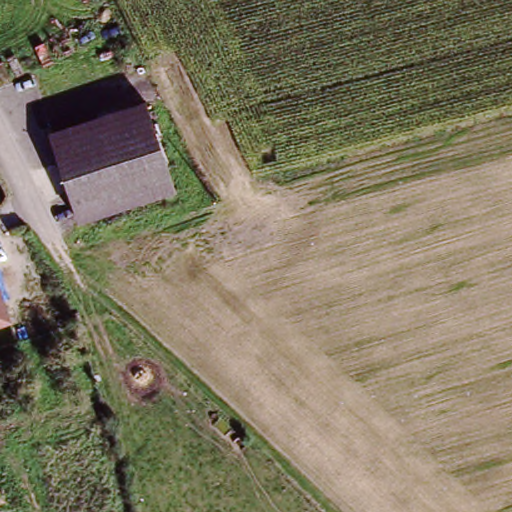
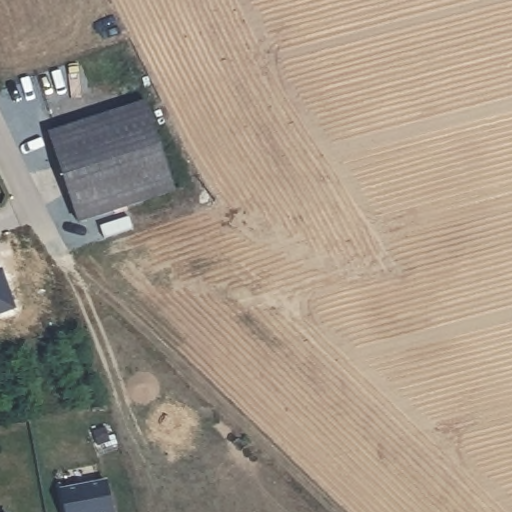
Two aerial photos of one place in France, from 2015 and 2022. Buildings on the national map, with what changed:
unchanged [(73,219),(56,172),(44,135),(95,117),(139,101),(168,189),(125,203),(73,219)]
unchanged [(0,326),(0,269),(17,320),(0,326)]
new [(108,482),(114,512),(65,512),(61,491),(108,482)]

